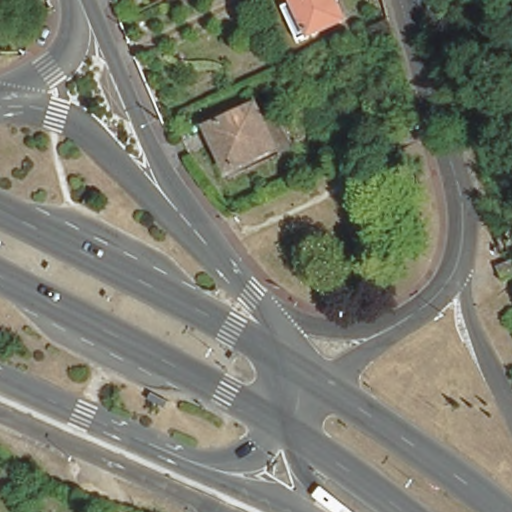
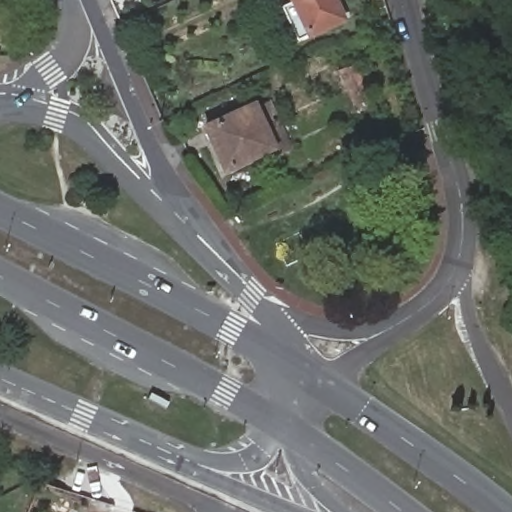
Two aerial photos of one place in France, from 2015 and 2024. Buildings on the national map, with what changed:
unchanged [(303,29),(291,0),(332,0),(338,14),(303,29)]
unchanged [(250,102),(276,154),(226,176),(202,125),(250,102)]

